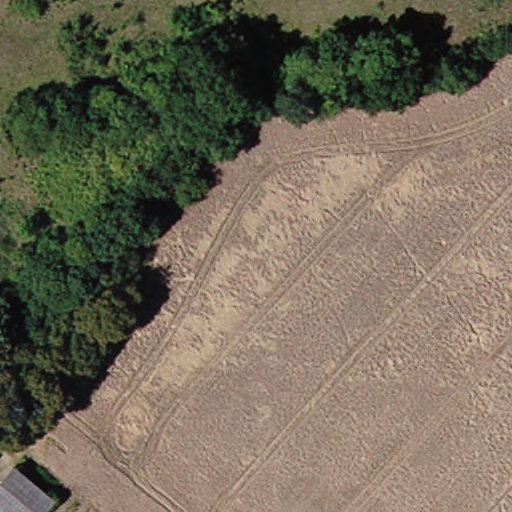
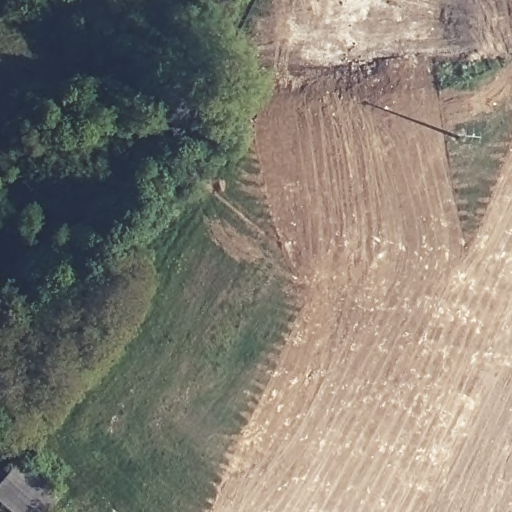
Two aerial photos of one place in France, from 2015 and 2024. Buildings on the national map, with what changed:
unchanged [(10,365),(4,359),(0,362),(0,327),(23,351),(10,365)]
unchanged [(14,512),(0,498),(0,490),(22,466),(58,501),(48,512),(14,512)]

